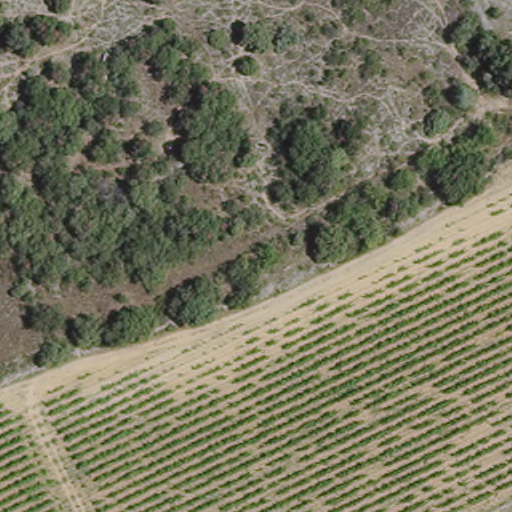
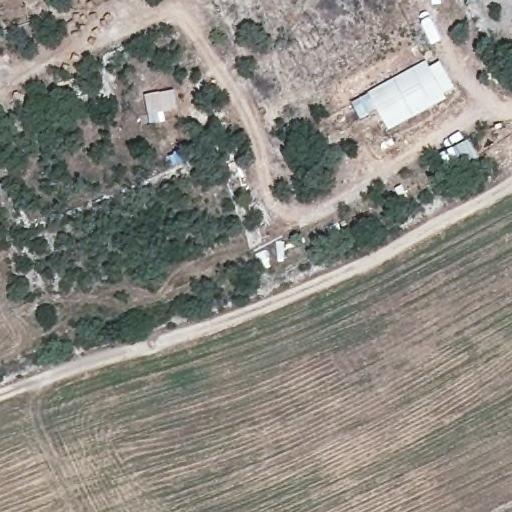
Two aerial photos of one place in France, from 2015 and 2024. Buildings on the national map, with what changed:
demolished [(466,25),(444,39),(437,19),(453,4),(466,25)]
new [(426,59),(430,66),(440,61),(456,90),(389,130),(378,110),(360,119),(351,101),(426,59)]
new [(471,138),(481,160),(452,174),(441,154),(471,138)]

